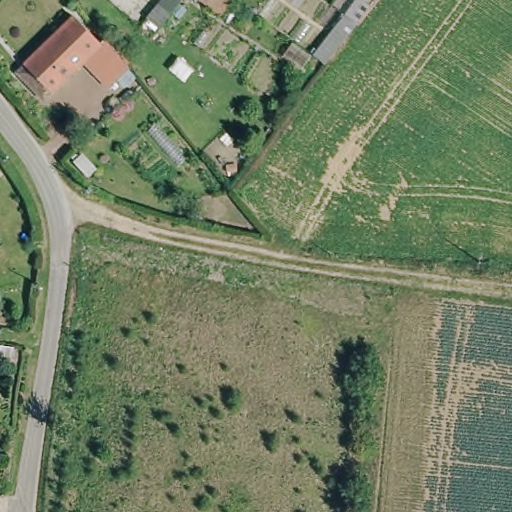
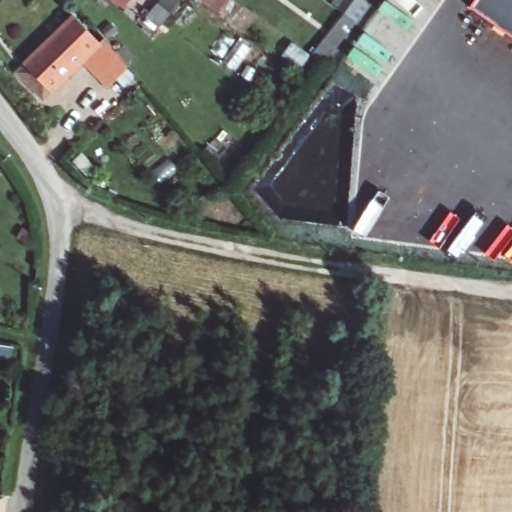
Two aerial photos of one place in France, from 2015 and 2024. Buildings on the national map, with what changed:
unchanged [(168,25),(150,10),(156,0),(181,0),(188,4),(168,25)]
unchanged [(201,0),(227,0),(216,11),(201,0)]
new [(476,0),(512,0),(512,34),(471,7),(476,0)]
unchanged [(114,46),(135,70),(115,89),(90,61),(47,101),(23,74),(80,21),(102,46),(109,40),(114,46)]

